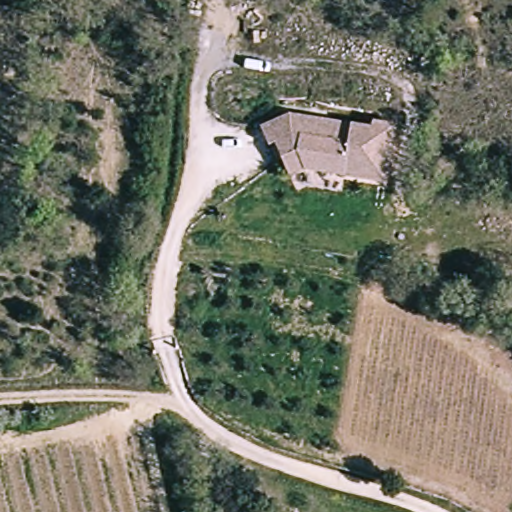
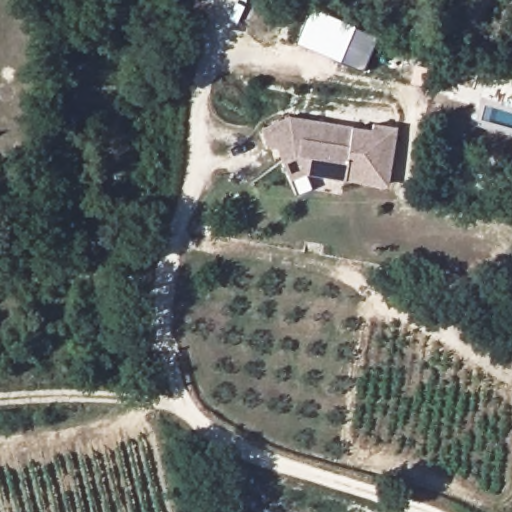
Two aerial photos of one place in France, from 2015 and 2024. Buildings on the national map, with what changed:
new [(376,39),(361,73),(295,44),(309,10),(376,39)]
unchanged [(287,114),(352,124),(371,127),(372,122),(397,125),(389,185),(305,173),(291,180),(277,145),(272,148),(260,126),(287,114)]

